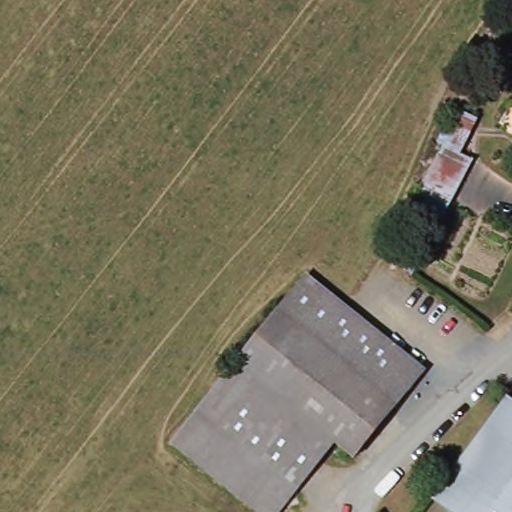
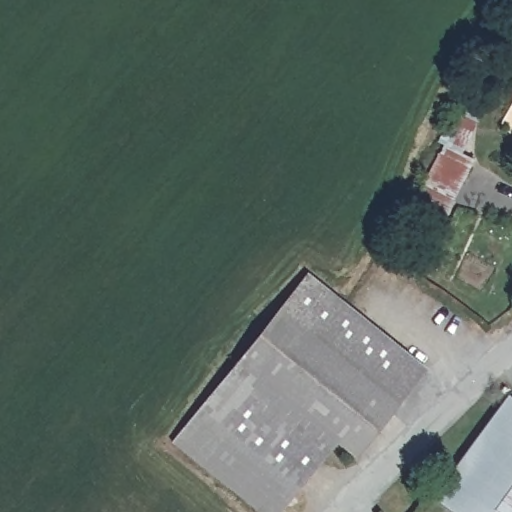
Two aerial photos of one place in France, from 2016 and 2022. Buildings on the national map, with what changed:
unchanged [(422,256),(393,242),(442,145),(438,143),(455,110),(477,121),(460,154),(472,160),(422,256)]
unchanged [(427,369),(357,456),(336,440),(276,512),(266,512),(173,440),(308,272),(427,369)]
unchanged [(454,512),(445,504),(431,492),(506,391),(512,396),(512,512),(454,512)]

